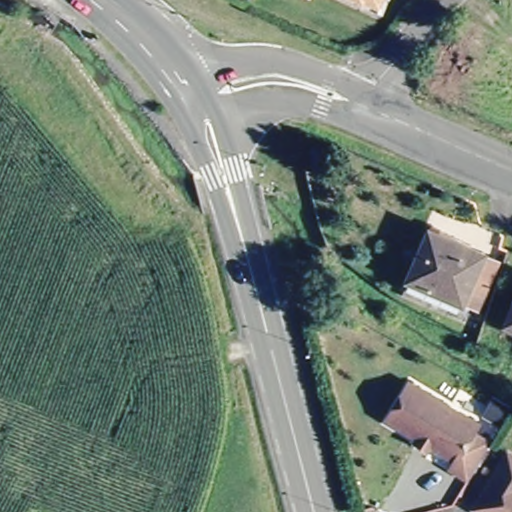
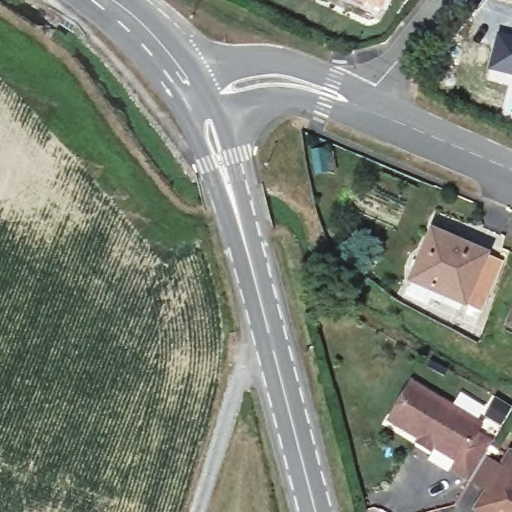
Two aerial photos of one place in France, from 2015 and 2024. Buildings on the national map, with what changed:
unchanged [(363,4),(356,0),(385,0),(380,10),(363,4)]
new [(497,30),(512,34),(512,77),(487,69),(497,30)]
unchanged [(482,255),(460,302),(407,278),(428,231),(482,255)]
unchanged [(500,264),(478,310),(460,302),(482,255),(500,264)]
unchanged [(507,325),(512,314),(512,327),(507,325)]
unchanged [(420,443),(423,438),(392,418),(415,383),(483,426),(477,435),(495,445),(472,480),(455,469),(460,461),(436,446),(433,451),(420,443)]
unchanged [(478,507),(505,464),(512,452),(512,512),(487,512),(478,507)]

